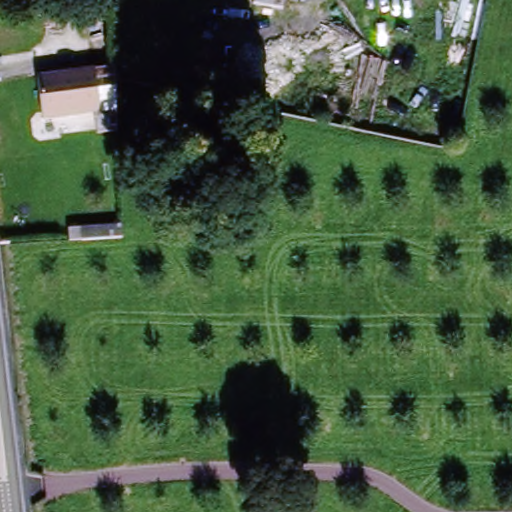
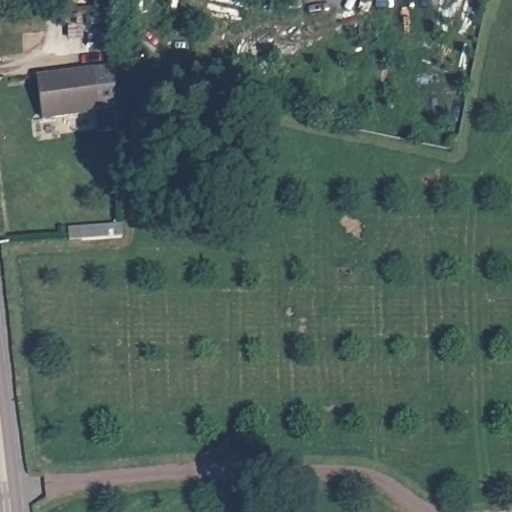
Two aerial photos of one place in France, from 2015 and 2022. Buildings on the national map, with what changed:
unchanged [(35,80),(92,74),(107,72),(111,113),(97,114),(40,121),(35,80)]
unchanged [(79,243),(78,229),(120,228),(120,241),(79,243)]

